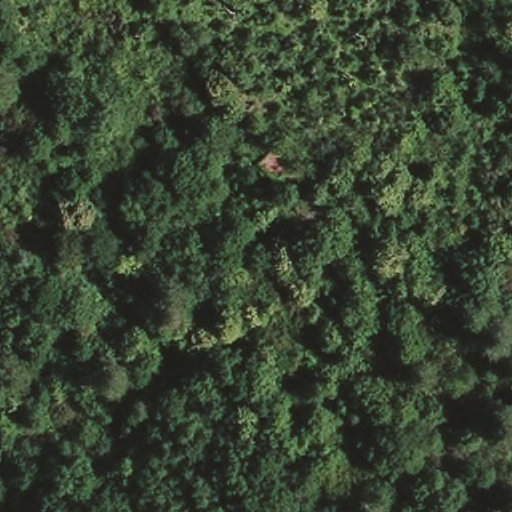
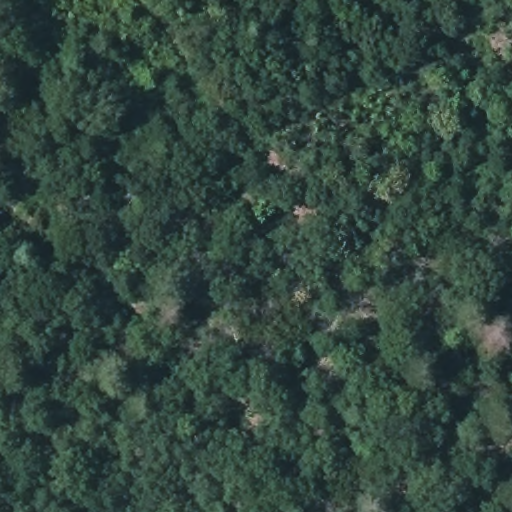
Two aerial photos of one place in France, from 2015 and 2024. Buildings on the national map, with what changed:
unchanged [(284,165),(266,177),(252,156),(271,145),(284,165)]
unchanged [(396,480),(412,470),(426,490),(409,501),(396,480)]

